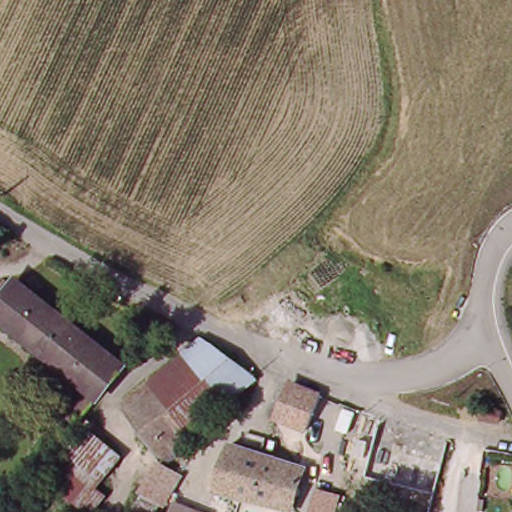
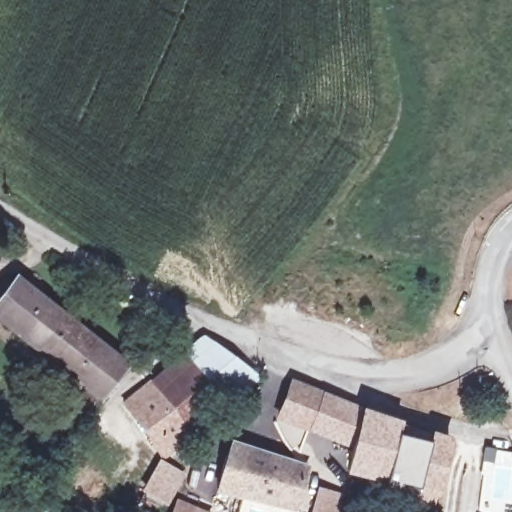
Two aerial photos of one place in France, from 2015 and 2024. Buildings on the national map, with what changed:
unchanged [(132,360),(105,399),(0,323),(0,305),(17,280),(132,360)]
unchanged [(197,336),(249,376),(192,433),(155,382),(197,336)]
new [(364,408),(364,411),(355,448),(277,418),(292,380),(364,408)]
unchanged [(155,382),(192,433),(195,436),(170,460),(131,407),(155,382)]
demolished [(320,397),(314,425),(286,418),(294,387),(320,397)]
new [(349,471),(364,411),(449,440),(437,493),(349,471)]
unchanged [(104,483),(111,492),(96,512),(91,512),(47,478),(69,451),(95,426),(124,457),(104,483)]
unchanged [(227,455),(302,467),(295,505),(220,491),(227,455)]
unchanged [(178,474),(164,501),(139,487),(152,465),(178,474)]
new [(340,512),(308,512),(316,486),(345,495),(340,512)]
unchanged [(178,500),(211,507),(210,512),(175,512),(178,500)]

